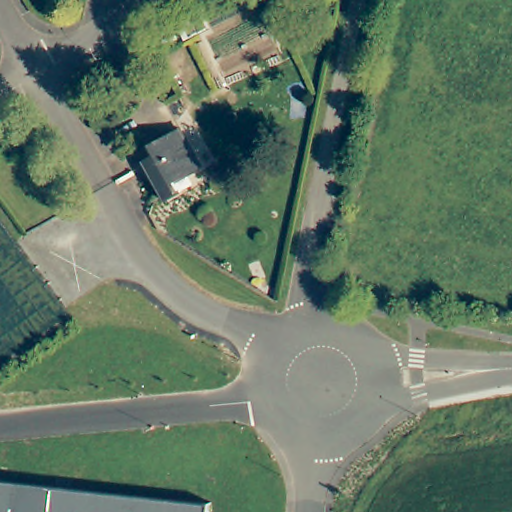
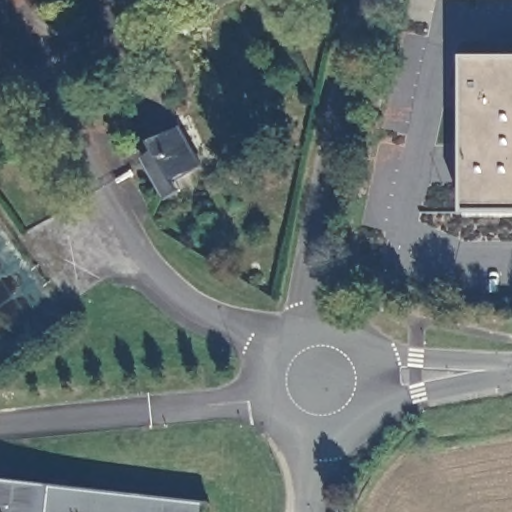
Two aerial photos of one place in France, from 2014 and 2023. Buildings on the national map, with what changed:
new [(512,210),(466,211),(465,59),(512,59),(512,210)]
unchanged [(173,181),(179,192),(165,200),(143,163),(154,158),(148,148),(177,130),(199,167),(173,181)]
unchanged [(207,503),(206,512),(0,512),(0,480),(207,503)]

